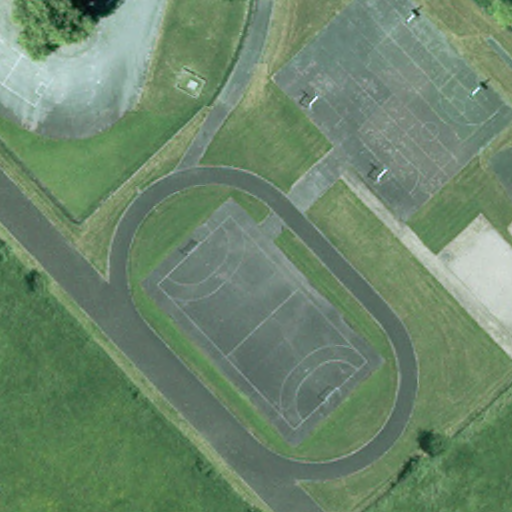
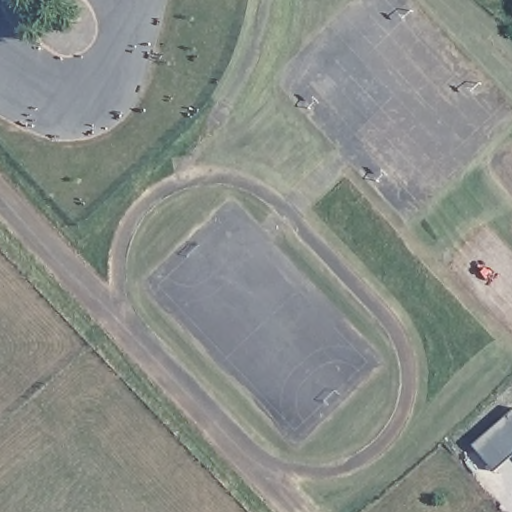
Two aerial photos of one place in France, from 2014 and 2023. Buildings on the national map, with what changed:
new [(472,445),(512,410),(512,456),(495,470),(472,445)]

